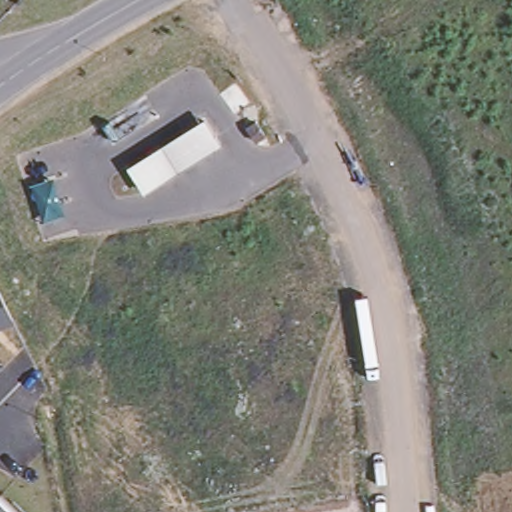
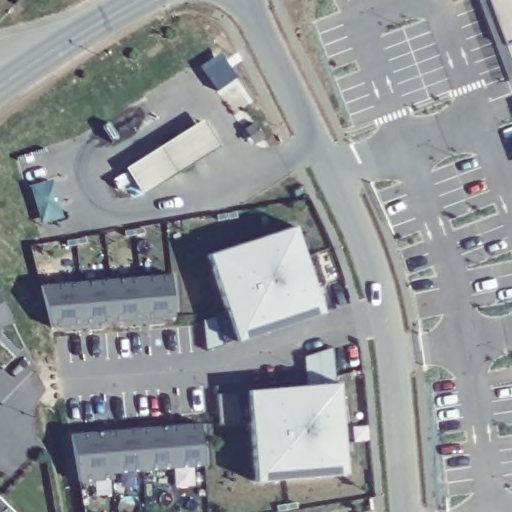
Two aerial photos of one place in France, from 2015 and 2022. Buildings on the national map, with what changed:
new [(490,0),(512,0),(512,61),(506,44),(490,0)]
unchanged [(204,119),(220,146),(146,194),(126,169),(204,119)]
new [(207,349),(204,322),(229,313),(209,255),(297,228),(324,312),(239,343),(207,349)]
new [(41,284),(172,275),(176,317),(52,327),(41,284)]
unchanged [(0,328),(0,295),(12,324),(0,328)]
new [(249,420),(221,423),(219,395),(249,393),(339,386),(347,474),(257,483),(249,420)]
new [(71,434),(200,424),(203,466),(112,474),(112,479),(79,482),(71,434)]
unchanged [(0,497),(14,512),(0,512),(0,497)]

